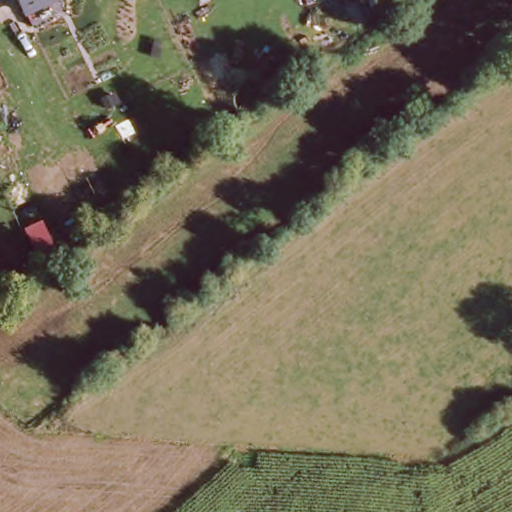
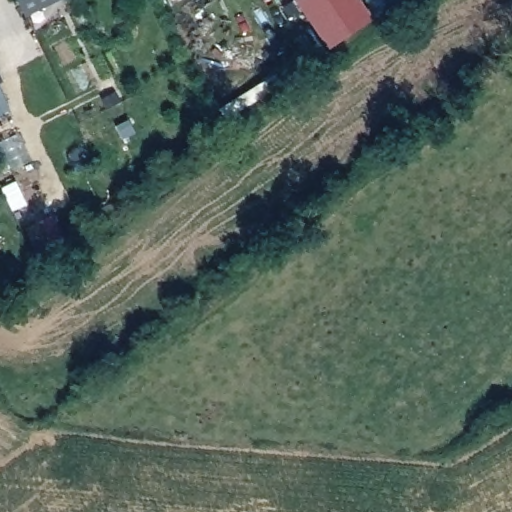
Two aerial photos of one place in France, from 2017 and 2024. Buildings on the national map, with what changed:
unchanged [(17,0),(60,0),(25,17),(17,0)]
new [(294,0),(359,0),(372,18),(327,49),(294,0)]
new [(10,111),(0,115),(0,90),(10,111)]

